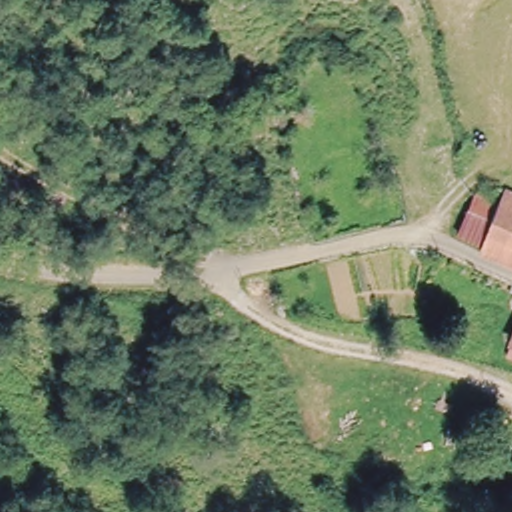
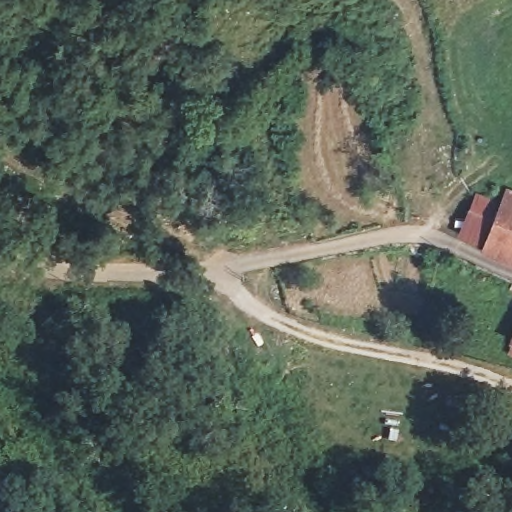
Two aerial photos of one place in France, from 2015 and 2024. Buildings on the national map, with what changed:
unchanged [(483,250),(458,242),(475,197),(498,206),(483,250)]
unchanged [(483,250),(498,206),(512,212),(512,261),(483,250)]

